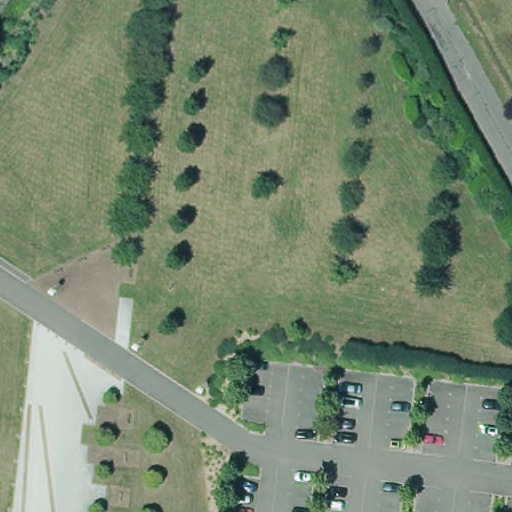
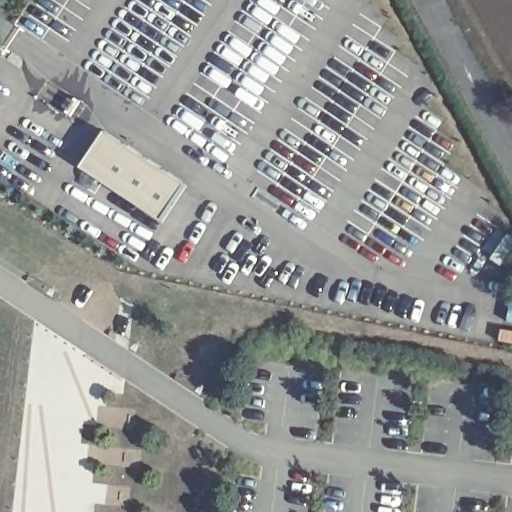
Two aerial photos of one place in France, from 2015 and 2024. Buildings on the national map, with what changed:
new [(106,132),(187,186),(162,222),(82,169),(106,132)]

